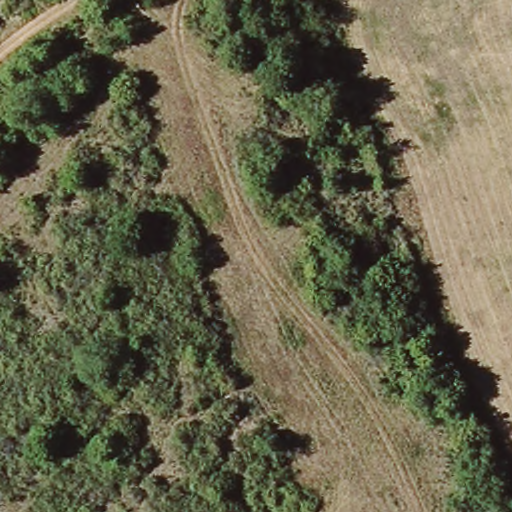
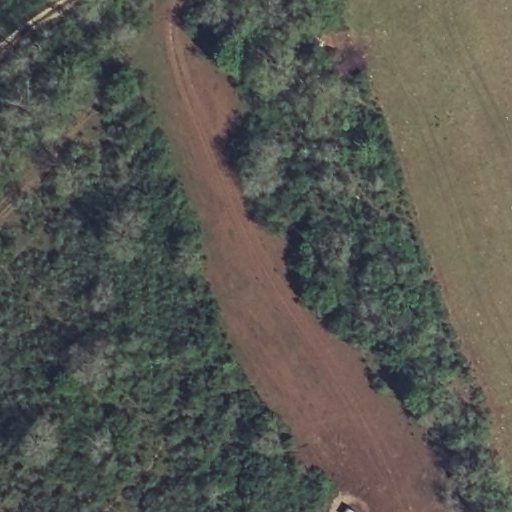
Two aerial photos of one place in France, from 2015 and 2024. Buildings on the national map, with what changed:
[]

